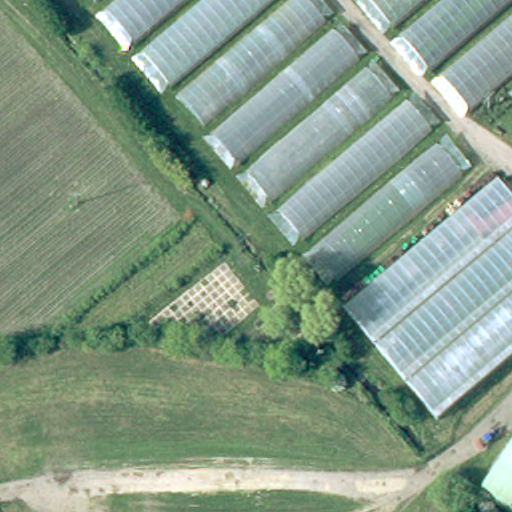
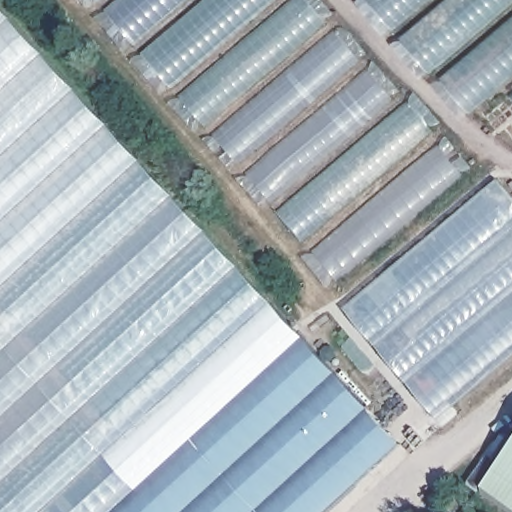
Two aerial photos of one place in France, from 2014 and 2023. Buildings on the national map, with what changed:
unchanged [(317,0),(472,175),(488,163),(512,192),(512,355),(433,414),(87,0),(317,0)]
unchanged [(461,107),(367,0),(512,0),(512,66),(495,80),(461,107)]
new [(271,304),(105,454),(138,492),(116,512),(0,512),(0,7),(271,304)]
unchanged [(512,101),(495,80),(512,66),(512,101)]
new [(401,445),(327,512),(116,512),(138,492),(105,454),(271,304),(401,445)]
unchanged [(512,446),(512,512),(502,512),(477,495),(512,446)]

